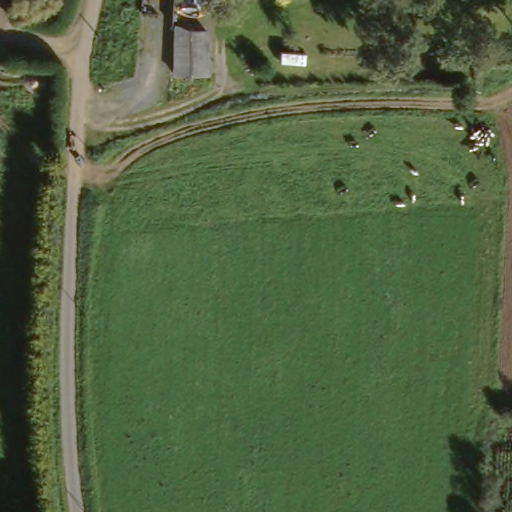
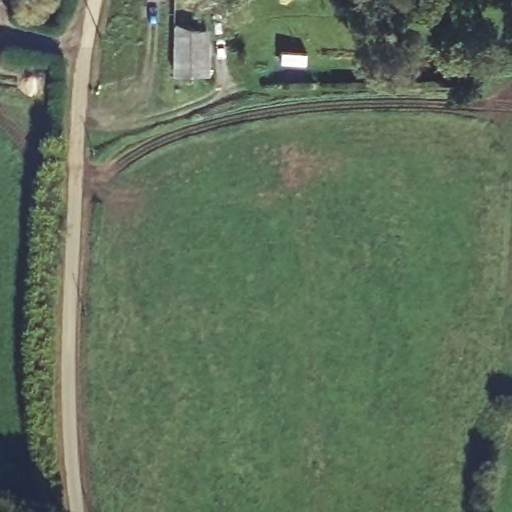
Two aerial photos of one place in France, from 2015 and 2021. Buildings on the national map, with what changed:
unchanged [(202,26),(218,25),(220,69),(185,70),(184,21),(202,26)]

